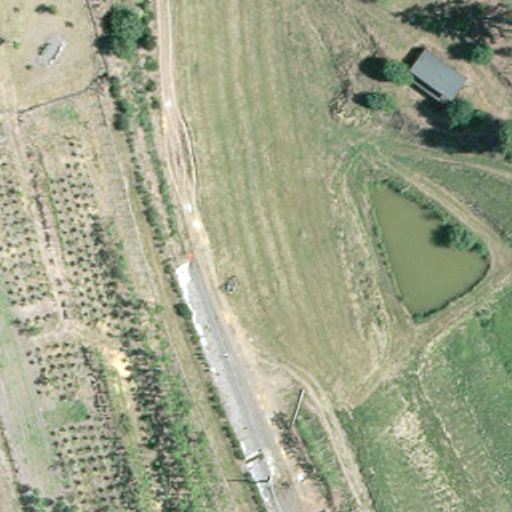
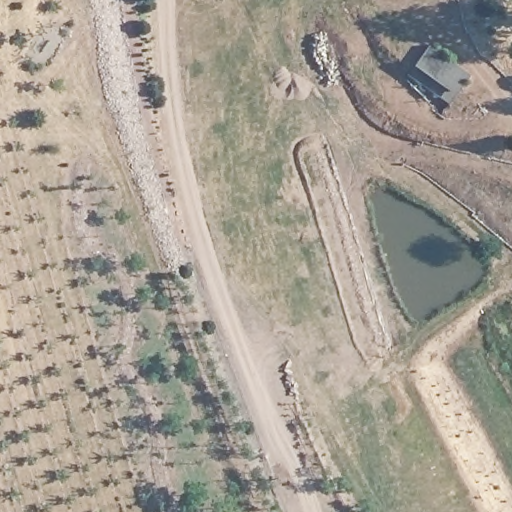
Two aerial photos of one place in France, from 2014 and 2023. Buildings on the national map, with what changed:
unchanged [(468,74),(449,98),(409,69),(427,45),(468,74)]

